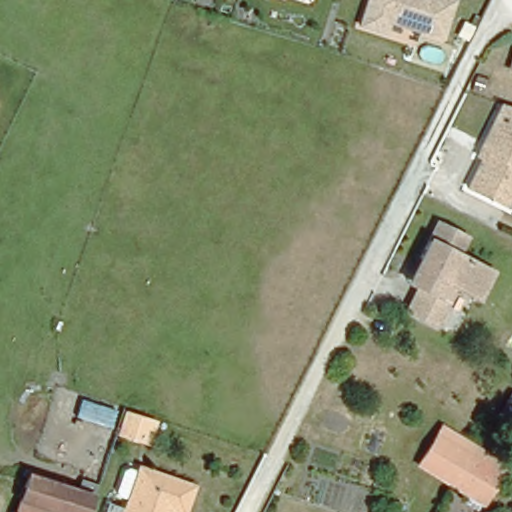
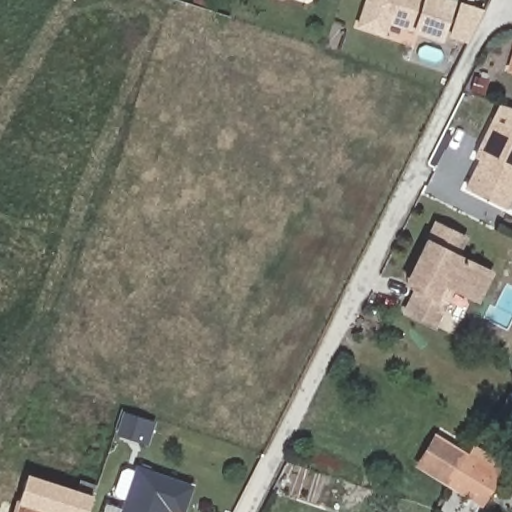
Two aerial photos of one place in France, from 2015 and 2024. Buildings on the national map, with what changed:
unchanged [(367,0),(452,0),(441,37),(388,20),(385,33),(359,25),(367,0)]
unchanged [(512,68),(511,68),(512,65),(512,68)]
unchanged [(466,186),(481,157),(475,154),(478,149),(500,103),(512,107),(512,192),(505,205),(466,186)]
unchanged [(465,234),(456,252),(492,269),(478,296),(453,284),(435,322),(406,308),(417,285),(407,280),(420,255),(437,220),(465,234)]
unchanged [(145,440),(137,438),(119,432),(125,413),(143,419),(151,421),(145,440)]
unchanged [(417,464),(441,426),(472,446),(449,483),(417,464)]
unchanged [(472,446),(505,465),(481,503),(449,483),(472,446)]
unchanged [(184,508),(169,503),(166,512),(120,512),(135,462),(193,480),(184,508)]
unchanged [(26,476),(74,490),(78,477),(96,483),(91,496),(86,512),(15,512),(26,476)]

